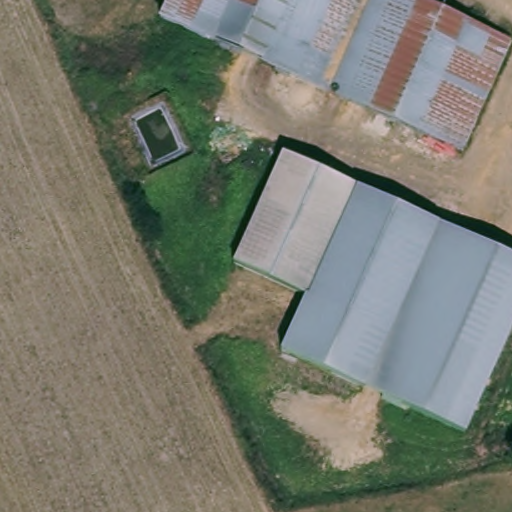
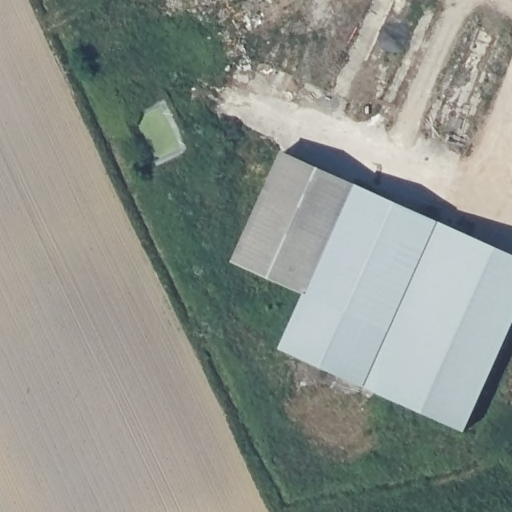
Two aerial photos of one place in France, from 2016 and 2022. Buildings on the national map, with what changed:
demolished [(509,37),(465,146),(214,39),(232,0),(421,0),(509,37)]
unchanged [(512,320),(466,426),(288,349),(312,288),(243,258),(288,154),(512,251),(512,320)]

